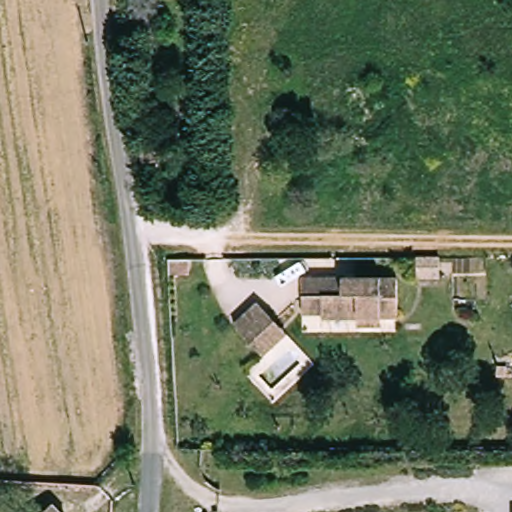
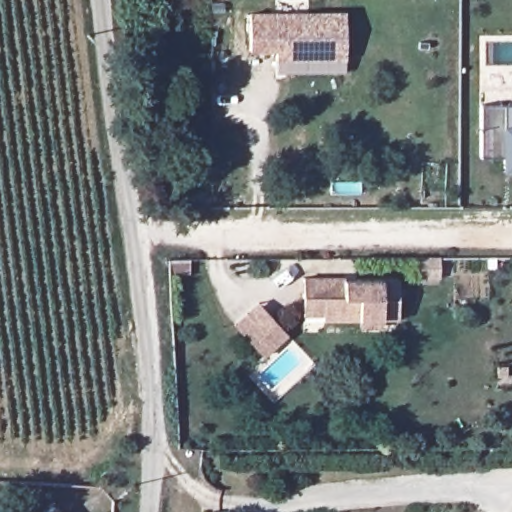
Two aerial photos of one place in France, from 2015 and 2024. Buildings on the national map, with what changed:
new [(344,60),(276,60),(276,50),(251,50),(251,15),(276,15),(276,10),(345,10),(344,60)]
new [(502,170),(501,157),(480,159),(480,106),(512,106),(512,170),(502,170)]
unchanged [(171,147),(174,172),(147,175),(145,165),(142,150),(171,147)]
unchanged [(346,276),(346,277),(399,277),(400,316),(383,316),(383,325),(360,325),(360,317),(325,317),(325,295),(305,295),(305,276),(346,276)]
unchanged [(265,353),(254,341),(236,322),(260,301),(277,320),(288,331),(265,353)]
unchanged [(57,508),(60,512),(52,512),(57,508)]

